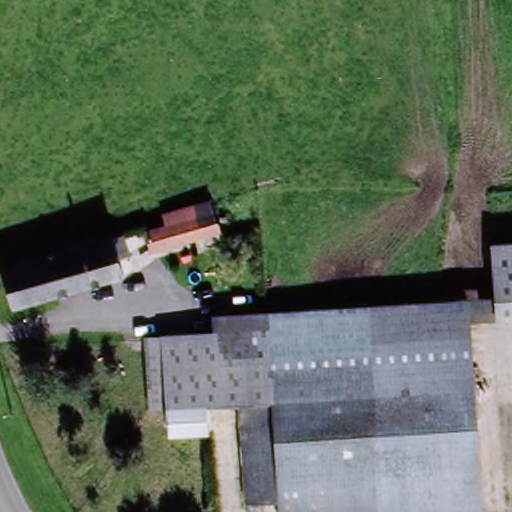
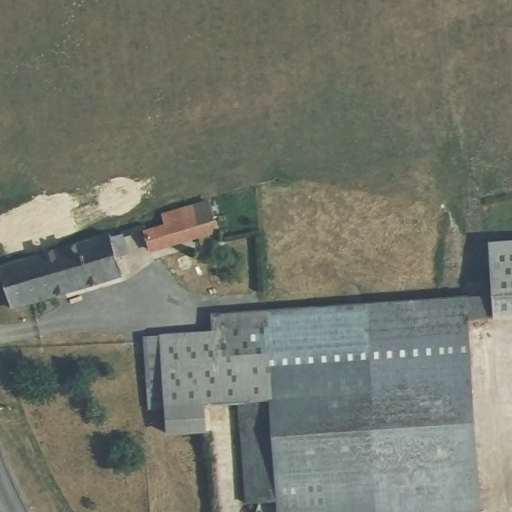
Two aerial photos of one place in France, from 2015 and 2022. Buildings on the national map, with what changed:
unchanged [(142,235),(185,221),(183,216),(207,209),(208,214),(216,239),(151,260),(142,235)]
unchanged [(15,313),(2,273),(115,240),(126,235),(133,257),(122,261),(127,278),(15,313)]
unchanged [(512,241),(512,295),(496,296),(491,242),(512,241)]
unchanged [(243,506),(238,410),(154,413),(142,340),(213,336),(212,316),(467,299),(496,296),(496,318),(468,320),(480,512),(277,512),(276,505),(243,506)]

